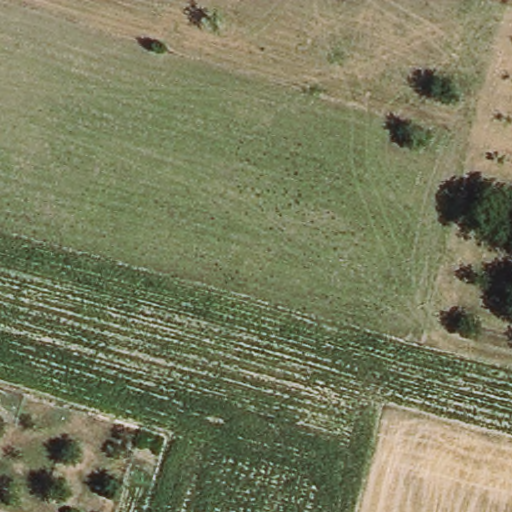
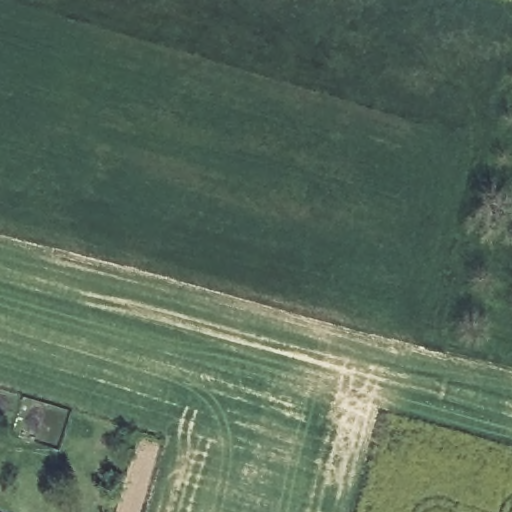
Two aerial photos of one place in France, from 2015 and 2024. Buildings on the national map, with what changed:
[]

